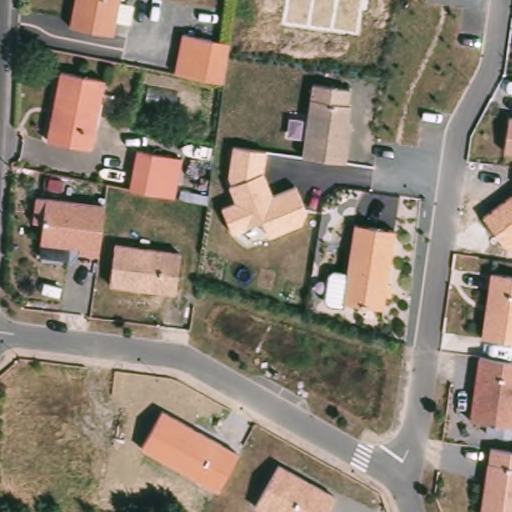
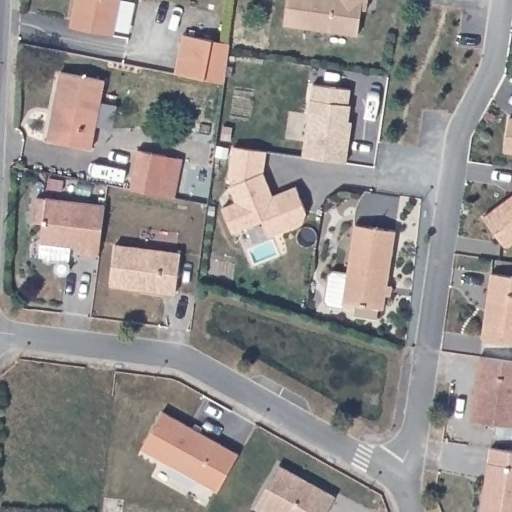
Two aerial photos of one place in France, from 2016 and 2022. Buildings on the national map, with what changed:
unchanged [(71,31),(77,0),(122,0),(115,38),(71,31)]
new [(358,35),(284,25),(287,0),(368,0),(367,9),(362,8),(358,35)]
unchanged [(225,48),(223,60),(219,87),(170,78),(178,39),(225,48)]
unchanged [(58,100),(62,76),(105,85),(91,152),(49,144),(54,116),(57,117),(60,100),(58,100)]
unchanged [(313,82),(352,89),(348,122),(355,123),(349,162),(303,156),(313,82)]
unchanged [(509,116),(512,116),(512,153),(503,152),(509,116)]
unchanged [(300,224),(270,237),(263,219),(231,232),(222,208),(235,203),(228,177),(235,148),(266,151),(263,173),(273,194),(295,185),(306,211),(300,224)]
unchanged [(170,202),(156,199),(125,193),(134,155),(164,161),(177,164),(170,202)]
unchanged [(483,218),(512,195),(512,244),(507,249),(483,218)]
unchanged [(100,254),(81,252),(81,246),(42,242),(45,222),(35,221),(37,196),(106,203),(100,254)]
unchanged [(395,230),(385,308),(343,302),(355,224),(395,230)]
unchanged [(177,293),(111,284),(116,243),(183,252),(177,293)]
unchanged [(489,273),(512,276),(512,343),(480,339),(489,273)]
unchanged [(481,355),(494,357),(502,358),(512,359),(512,425),(471,420),(481,355)]
unchanged [(217,490),(142,449),(163,410),(237,453),(217,490)]
unchanged [(491,447),(512,449),(512,512),(482,512),(491,447)]
unchanged [(327,512),(261,512),(253,508),(276,464),(335,496),(327,512)]

